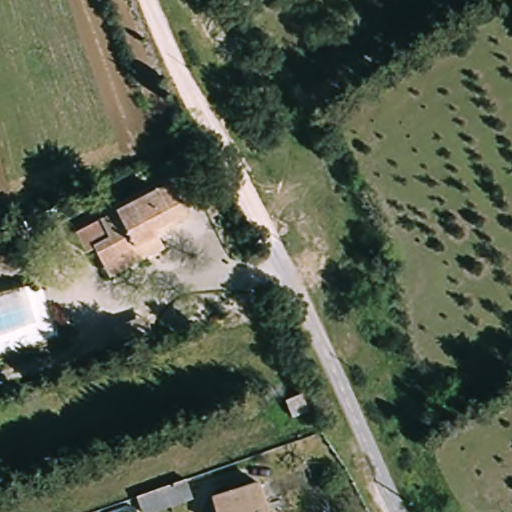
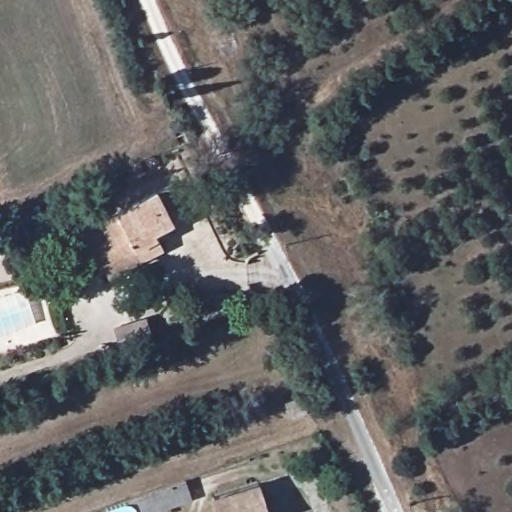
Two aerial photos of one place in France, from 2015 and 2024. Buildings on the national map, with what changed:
unchanged [(102,260),(94,242),(106,237),(98,220),(171,185),(186,215),(175,220),(171,215),(149,225),(160,248),(137,258),(108,272),(102,260)]
unchanged [(153,344),(120,353),(112,325),(147,314),(153,344)]
unchanged [(304,414),(288,417),(284,401),(301,397),(304,414)]
unchanged [(130,498),(183,480),(191,502),(163,512),(136,512),(130,498)]
unchanged [(249,483),(259,512),(206,512),(202,498),(249,483)]

